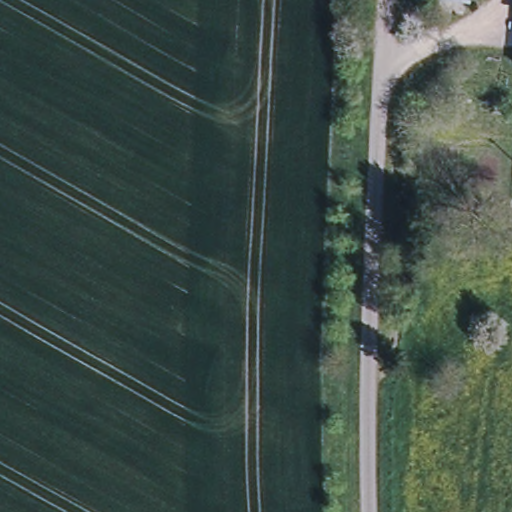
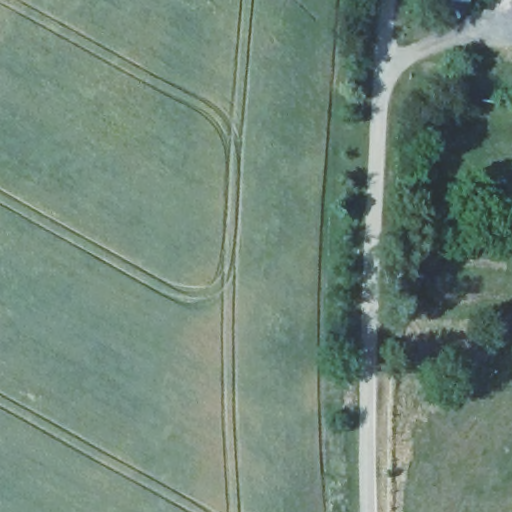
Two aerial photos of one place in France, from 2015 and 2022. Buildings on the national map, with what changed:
unchanged [(472,4),(452,0),(473,0),(472,4)]

